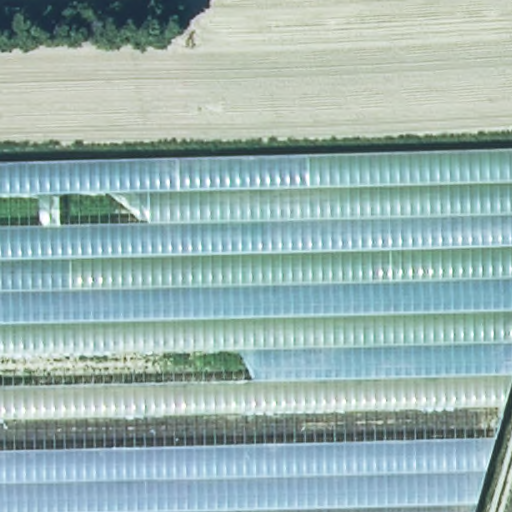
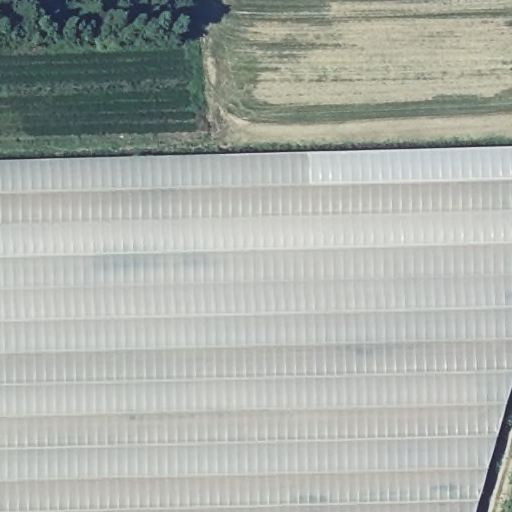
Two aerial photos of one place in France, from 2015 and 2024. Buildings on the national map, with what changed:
unchanged [(512,363),(470,512),(0,512),(0,164),(512,151),(512,363)]

